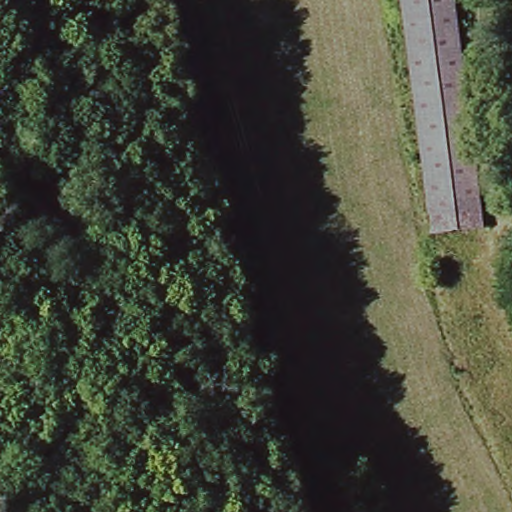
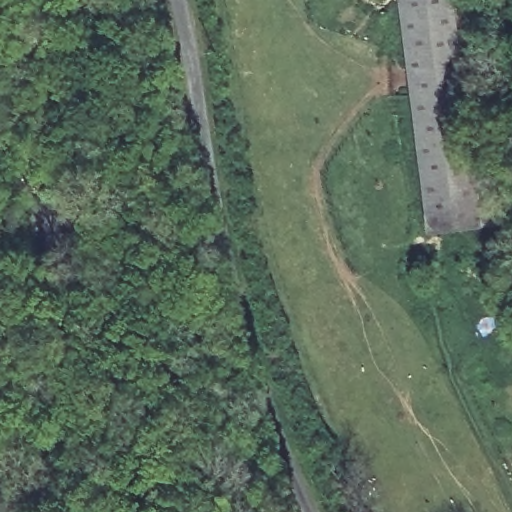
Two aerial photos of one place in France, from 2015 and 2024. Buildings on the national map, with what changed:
unchanged [(404,0),(458,0),(488,224),(435,230),(404,0)]

